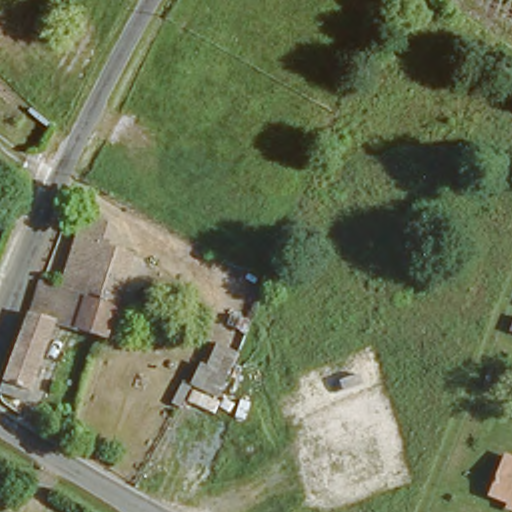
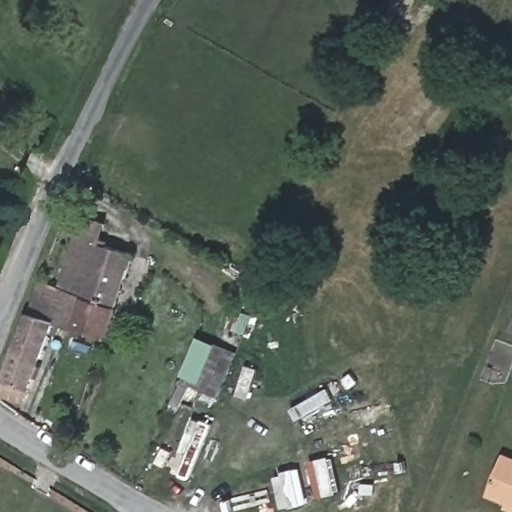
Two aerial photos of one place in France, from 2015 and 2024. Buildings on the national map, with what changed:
unchanged [(81,213),(105,222),(100,241),(130,251),(101,335),(77,328),(87,294),(60,283),(81,213)]
unchanged [(31,388),(5,380),(22,331),(30,310),(42,277),(60,283),(87,294),(77,328),(55,319),(49,339),(50,340),(31,388)]
unchanged [(218,399),(194,388),(181,408),(172,402),(183,382),(177,379),(195,337),(215,347),(220,343),(240,354),(218,399)]
unchanged [(512,502),(485,491),(501,452),(512,456),(512,502)]

